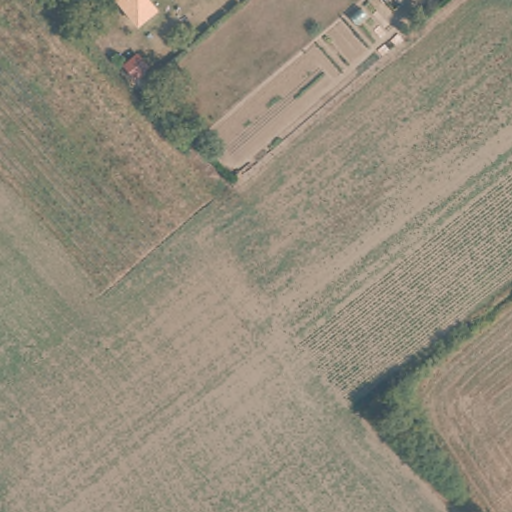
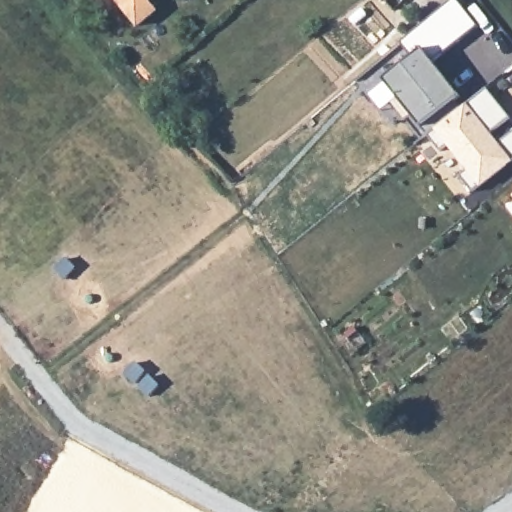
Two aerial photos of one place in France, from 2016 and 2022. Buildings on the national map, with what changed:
unchanged [(143,0),(171,0),(154,14),(143,0)]
new [(407,54),(398,43),(450,0),(456,0),(477,26),(432,60),(462,95),(418,130),(377,78),(407,54)]
new [(459,175),(467,170),(447,145),(439,150),(427,135),(484,89),(507,119),(490,132),(497,142),(512,131),(512,159),(472,191),(459,175)]

